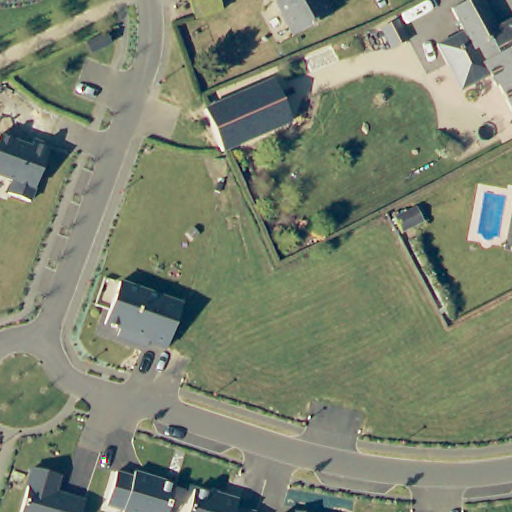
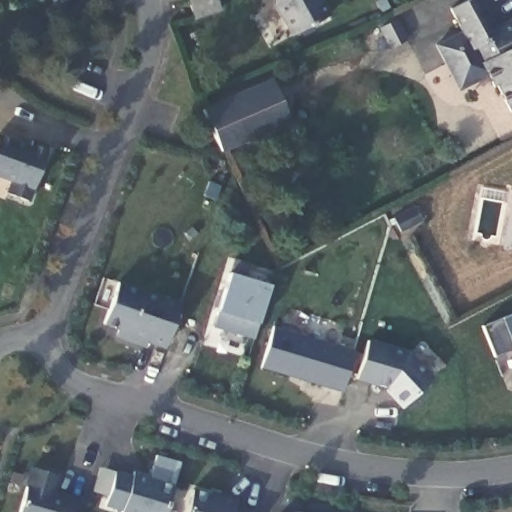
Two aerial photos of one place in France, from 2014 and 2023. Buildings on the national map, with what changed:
unchanged [(223,10),(198,18),(192,0),(220,0),(223,10)]
unchanged [(324,3),(326,2),(334,16),(297,35),(282,6),(288,3),(287,0),(322,0),(324,3)]
unchanged [(465,39),(453,17),(480,2),(498,34),(512,26),(512,108),(502,92),(500,93),(493,81),(467,96),(452,69),(442,53),(465,39)]
unchanged [(368,30),(383,21),(395,40),(381,50),(368,30)]
unchanged [(103,51),(85,57),(82,58),(78,47),(83,45),(99,39),(103,51)]
unchanged [(201,108),(270,80),(290,125),(222,153),(201,108)]
unchanged [(29,146),(30,139),(49,146),(30,203),(6,193),(11,181),(0,177),(0,136),(29,146)]
new [(230,271),(270,285),(252,338),(212,324),(230,271)]
unchanged [(114,331),(99,325),(106,304),(109,298),(114,284),(125,289),(176,307),(160,350),(142,344),(140,351),(127,347),(120,344),(110,341),(114,331)]
new [(512,313),(512,349),(493,357),(481,325),(500,318),(512,313)]
new [(271,327),(352,349),(340,391),(258,367),(271,327)]
new [(365,340),(409,352),(431,378),(401,408),(381,388),(355,382),(365,340)]
unchanged [(14,512),(25,472),(51,479),(46,498),(76,506),(74,512),(14,512)]
unchanged [(132,476),(134,473),(173,486),(165,512),(119,512),(120,510),(105,506),(116,472),(132,476)]
unchanged [(204,496),(210,498),(210,496),(229,501),(226,508),(241,512),(179,512),(185,491),(204,496)]

